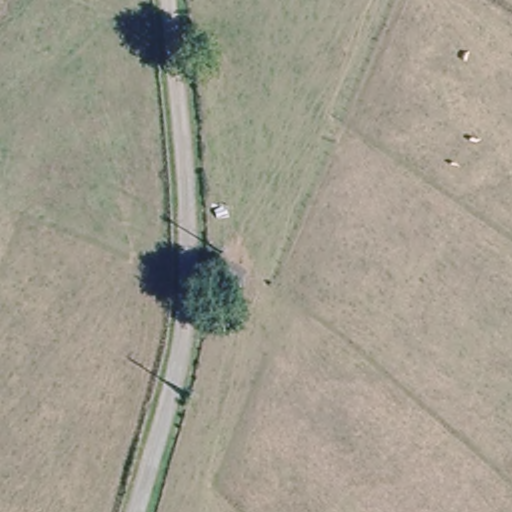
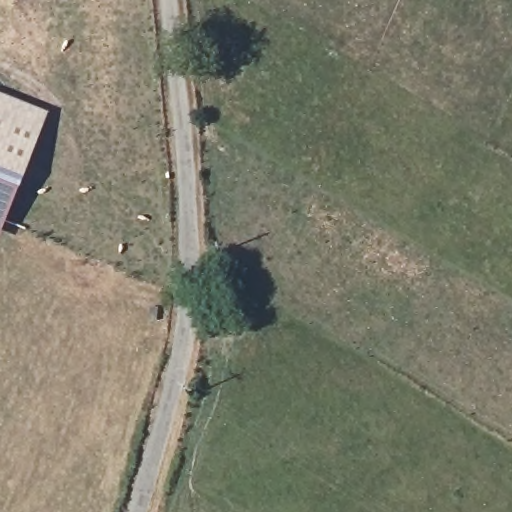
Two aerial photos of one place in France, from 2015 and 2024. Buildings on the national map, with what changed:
new [(0,234),(0,95),(48,114),(0,234)]
new [(249,275),(244,292),(214,271),(222,259),(249,275)]

